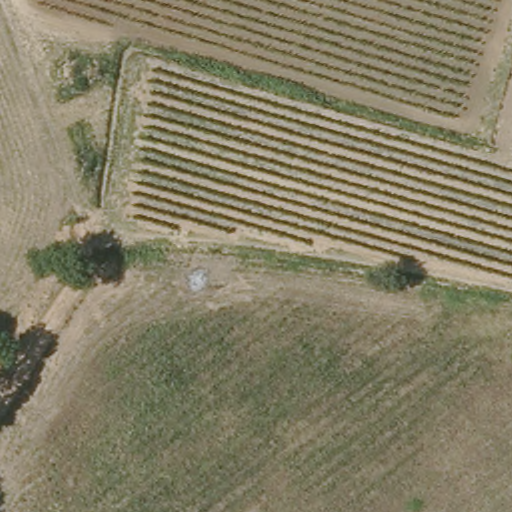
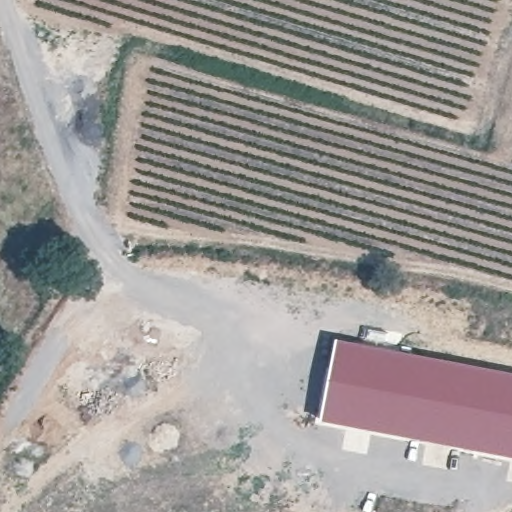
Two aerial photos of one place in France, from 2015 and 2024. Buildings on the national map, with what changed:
new [(512,372),(512,460),(483,455),(433,444),(360,432),(317,423),(335,337),(512,372)]

